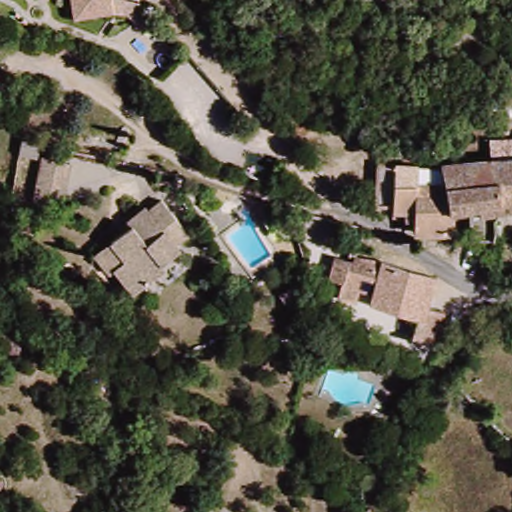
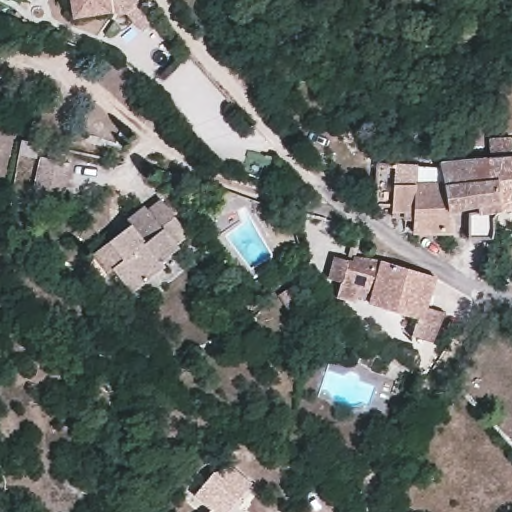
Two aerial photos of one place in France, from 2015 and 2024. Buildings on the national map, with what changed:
unchanged [(70,0),(112,0),(113,15),(73,20),(70,0)]
unchanged [(0,89),(21,96),(10,117),(0,114),(0,89)]
unchanged [(480,159),(480,140),(512,136),(512,197),(499,199),(447,205),(445,179),(443,167),(443,162),(480,159)]
unchanged [(50,193),(47,206),(31,204),(42,159),(48,161),(50,155),(76,160),(66,196),(50,193)]
unchanged [(400,183),(445,179),(447,205),(451,233),(421,235),(417,209),(400,206),(400,183)]
unchanged [(93,263),(113,246),(118,240),(111,232),(123,222),(139,208),(145,212),(156,203),(181,232),(170,244),(173,249),(160,265),(163,269),(133,294),(113,272),(105,278),(93,263)]
unchanged [(496,247),(486,246),(492,208),(498,208),(512,208),(512,247),(496,247)]
unchanged [(341,280),(330,276),(339,250),(440,276),(432,308),(447,310),(438,342),(413,338),(417,316),(339,298),(341,280)]
new [(212,511),(194,497),(225,461),(251,484),(230,512),(216,512),(213,510),(212,511)]
unchanged [(216,512),(211,512),(213,510),(216,512)]

